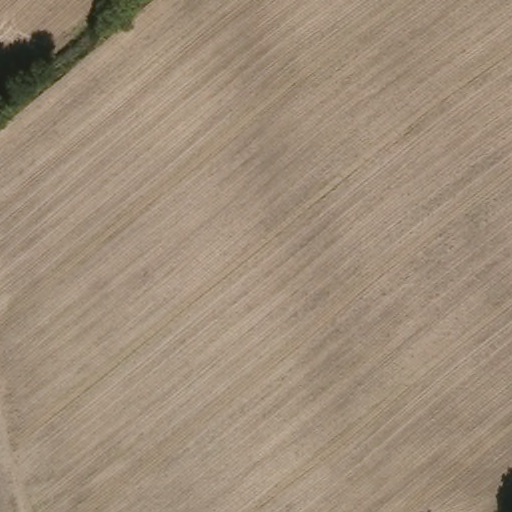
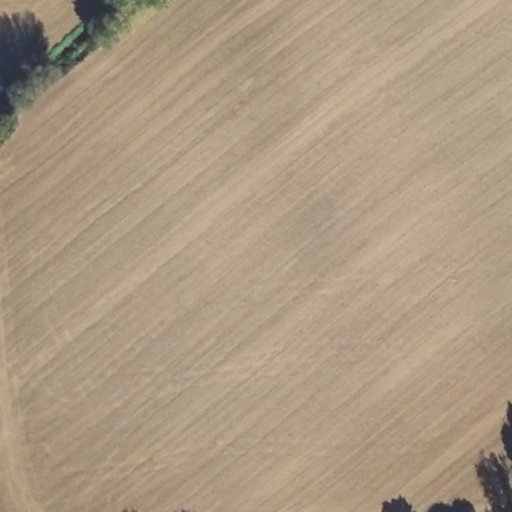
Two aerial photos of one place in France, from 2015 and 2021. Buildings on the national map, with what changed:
[]

